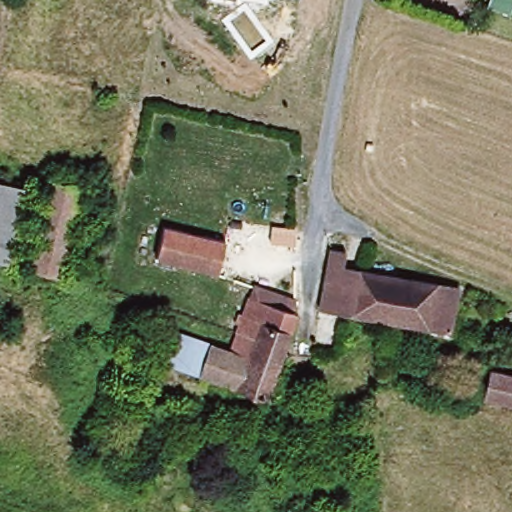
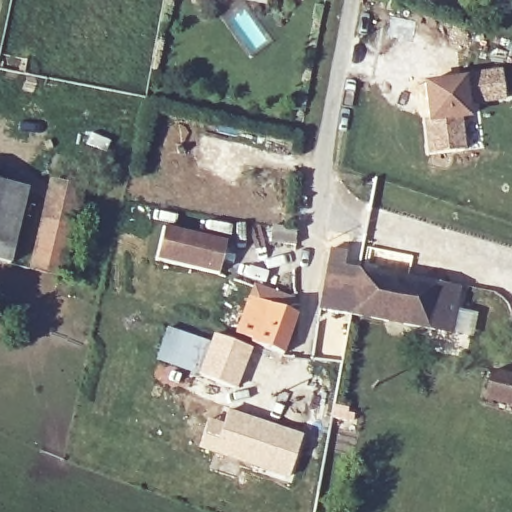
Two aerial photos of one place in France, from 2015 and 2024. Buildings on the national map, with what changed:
unchanged [(230,0),(235,0),(235,1),(230,0)]
new [(460,79),(500,73),(504,99),(465,105),(467,119),(460,120),(463,153),(430,157),(425,122),(428,121),(427,115),(426,103),(423,86),(460,81),(460,79)]
unchanged [(81,189),(59,276),(29,270),(54,182),(81,189)]
unchanged [(24,194),(7,263),(0,262),(0,188),(24,194)]
unchanged [(222,241),(211,271),(160,260),(170,227),(222,241)]
unchanged [(318,313),(326,249),(346,253),(344,268),(356,270),(345,318),(318,313)]
unchanged [(356,270),(393,278),(383,324),(345,318),(356,270)]
unchanged [(393,278),(456,290),(447,335),(383,324),(393,278)]
unchanged [(142,319),(237,350),(245,332),(258,297),(298,310),(299,315),(287,347),(285,353),(280,367),(269,399),(132,353),(142,319)]
unchanged [(491,374),(512,380),(512,406),(484,398),(491,374)]
demolished [(140,391),(139,401),(158,408),(150,425),(109,411),(117,382),(140,391)]
new [(303,438),(290,479),(215,453),(200,448),(209,422),(224,427),(229,413),(303,438)]

